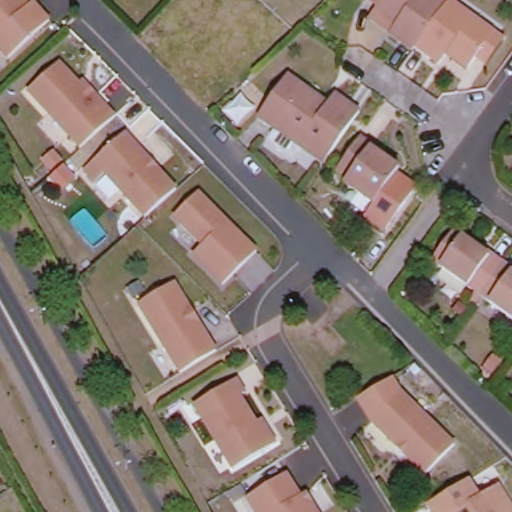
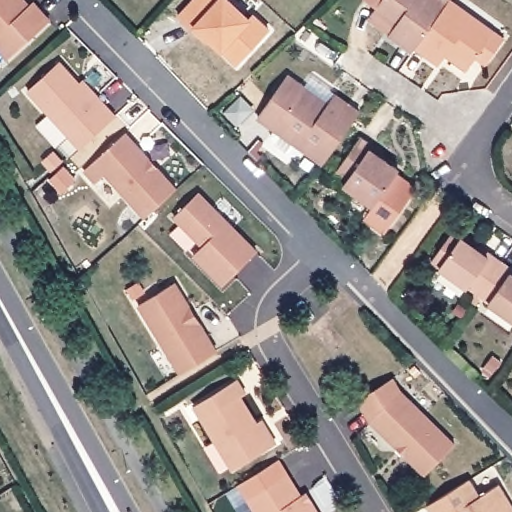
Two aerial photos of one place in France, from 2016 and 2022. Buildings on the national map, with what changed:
unchanged [(20,3),(25,9),(32,2),(45,17),(49,20),(7,58),(3,54),(0,50),(0,0),(23,0),(20,3)]
new [(193,0),(232,0),(250,18),(253,15),(270,28),(236,64),(222,53),(207,39),(205,42),(178,16),(193,0)]
unchanged [(378,8),(367,0),(450,0),(449,2),(446,5),(416,47),(413,52),(390,35),(369,21),(378,8)]
unchanged [(445,55),(439,63),(416,47),(446,5),(449,2),(493,32),(503,40),(486,64),(475,57),(470,65),(466,69),(445,55)]
unchanged [(59,62),(78,84),(82,80),(104,105),(115,117),(89,140),(80,149),(27,91),(59,62)]
unchanged [(290,152),(278,143),(274,135),(279,129),(261,117),(291,74),(308,86),(305,90),(307,92),(331,109),(340,97),(364,113),(331,160),(307,143),(305,147),(303,147),(299,153),(290,152)]
unchanged [(390,165),(410,180),(379,223),(360,209),(368,197),(339,176),(342,171),(332,164),(356,129),(367,137),(380,146),(376,149),(393,161),(390,165)]
unchanged [(125,134),(176,189),(175,190),(145,218),(105,174),(95,183),(85,171),(125,134)]
unchanged [(53,153),(61,162),(52,171),(44,161),(53,153)]
unchanged [(198,194),(257,252),(223,285),(193,256),(203,246),(175,217),(198,194)]
unchanged [(436,266),(450,247),(458,237),(467,243),(483,254),(485,251),(497,259),(508,266),(483,300),(436,266)]
unchanged [(512,269),(512,321),(483,300),(508,266),(512,269)]
unchanged [(175,283),(216,351),(180,373),(138,305),(175,283)]
unchanged [(276,444),(270,447),(233,470),(195,405),(237,380),(245,393),(240,396),(256,424),(261,421),(276,444)]
unchanged [(460,450),(430,479),(376,426),(362,404),(391,387),(397,383),(405,396),(460,450)]
unchanged [(306,493),(311,501),(318,512),(257,512),(247,497),(287,473),(301,496),(306,493)]
unchanged [(475,479),(485,496),(504,485),(512,497),(512,512),(474,512),(470,507),(461,512),(436,512),(432,506),(475,479)]

